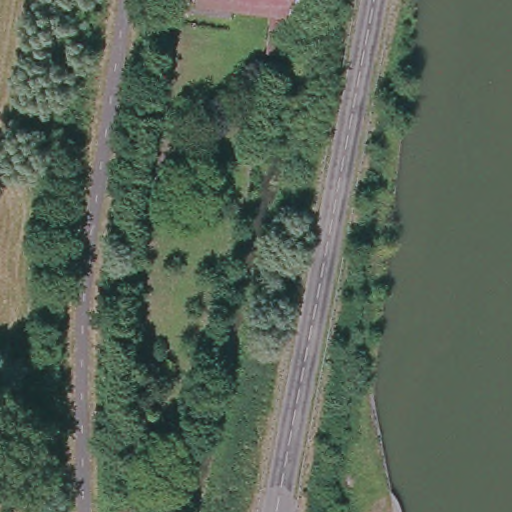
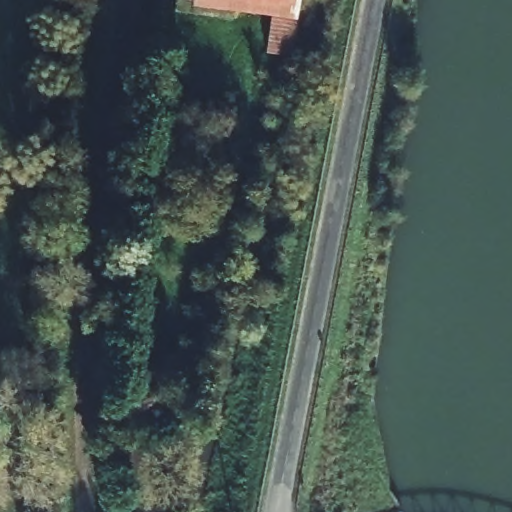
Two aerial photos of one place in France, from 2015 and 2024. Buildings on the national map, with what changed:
unchanged [(248,11),(246,23),(190,16),(191,4),(192,0),(314,0),(312,19),(248,11)]
unchanged [(309,32),(299,65),(276,58),(286,25),(309,32)]

